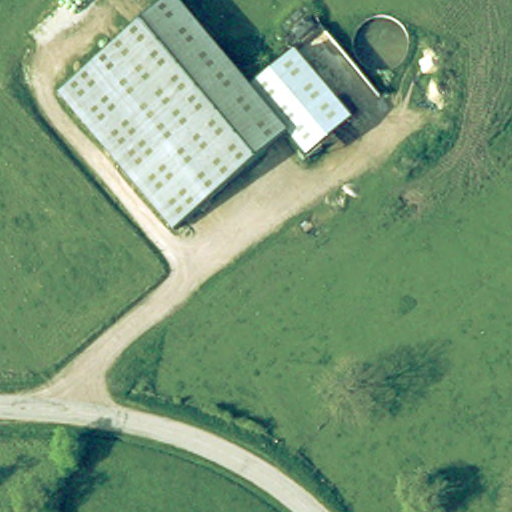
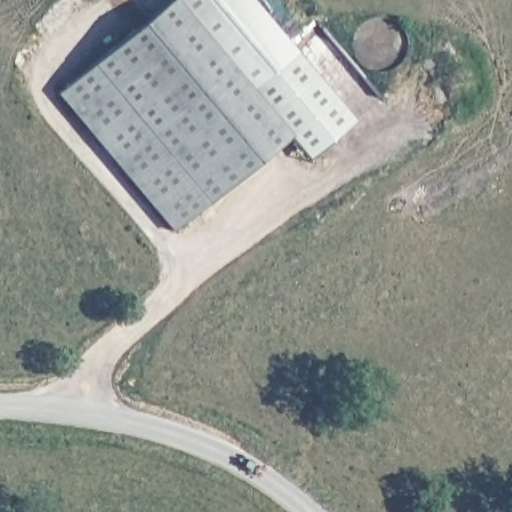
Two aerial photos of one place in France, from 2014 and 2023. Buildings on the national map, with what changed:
unchanged [(64,92),(100,61),(169,0),(177,0),(253,86),(292,132),(218,197),(183,229),(64,92)]
new [(177,0),(252,0),(294,50),(282,61),(253,86),(177,0)]
unchanged [(282,61),(297,48),(356,117),(341,130),(311,155),(292,132),(253,86),(282,61)]

